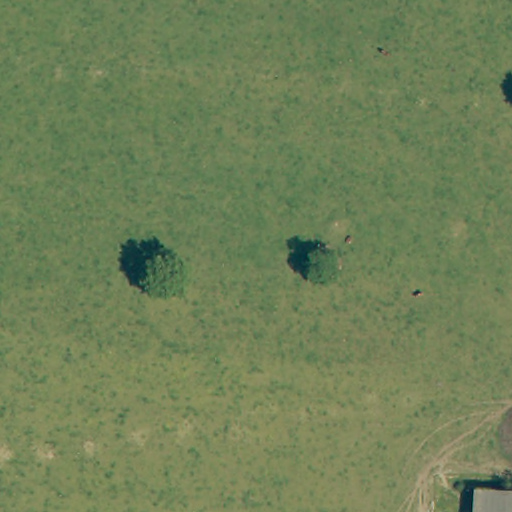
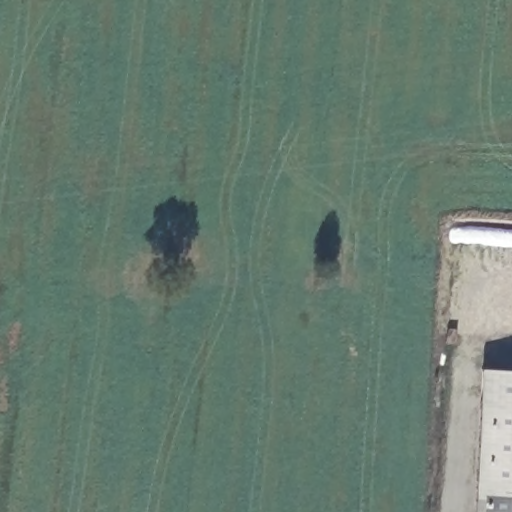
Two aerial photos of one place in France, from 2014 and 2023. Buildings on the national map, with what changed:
new [(485,492),(492,370),(512,371),(512,493),(485,492)]
unchanged [(512,493),(512,512),(484,512),(485,492),(512,493)]

